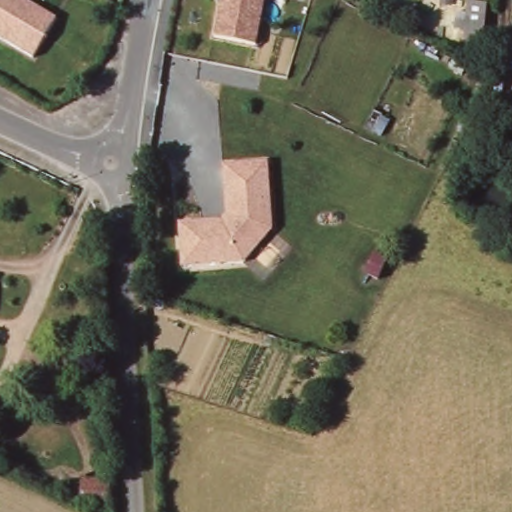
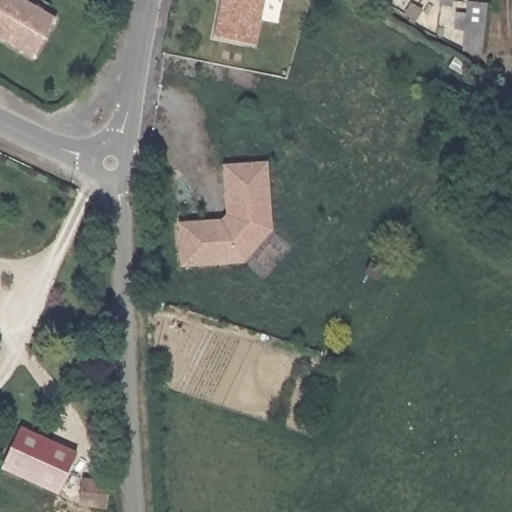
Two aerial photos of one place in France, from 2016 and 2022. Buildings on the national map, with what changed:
unchanged [(27,0),(55,17),(32,56),(0,37),(0,0),(27,0)]
unchanged [(265,0),(256,46),(215,37),(222,0),(265,0)]
unchanged [(463,50),(466,21),(483,23),(480,53),(463,50)]
unchanged [(266,159),(271,232),(243,263),(179,266),(175,222),(222,219),(218,163),(266,159)]
new [(77,451),(58,493),(1,467),(20,426),(77,451)]
unchanged [(107,477),(108,502),(90,503),(89,478),(107,477)]

